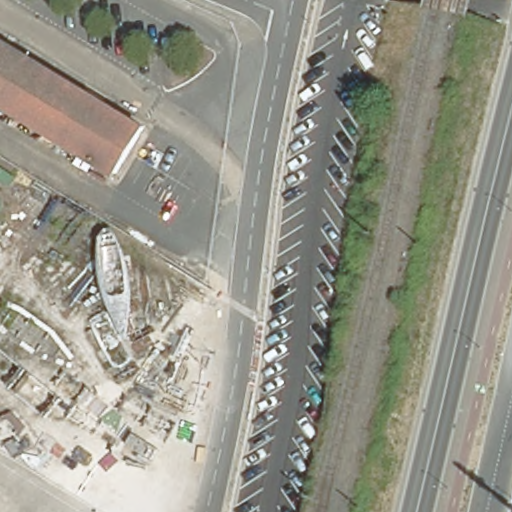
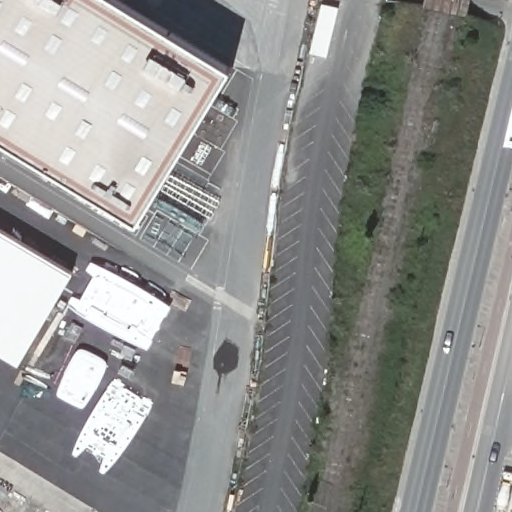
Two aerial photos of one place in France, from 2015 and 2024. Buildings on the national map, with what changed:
new [(137,223),(0,138),(0,0),(126,0),(234,65),(137,223)]
demolished [(296,4),(306,7),(300,28),(290,24),(296,4)]
demolished [(9,45),(159,136),(130,182),(0,103),(0,40),(9,45)]
new [(20,362),(0,351),(0,228),(74,272),(20,362)]

